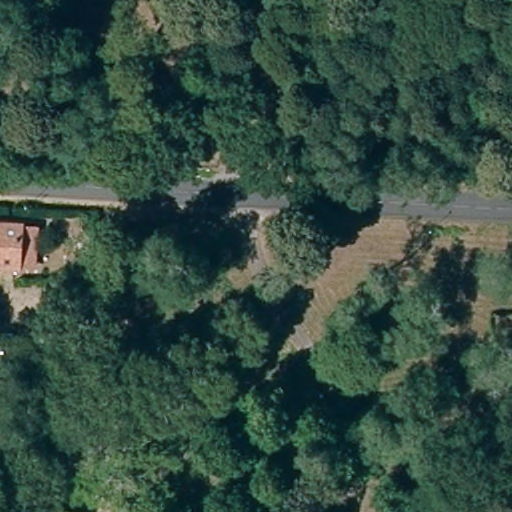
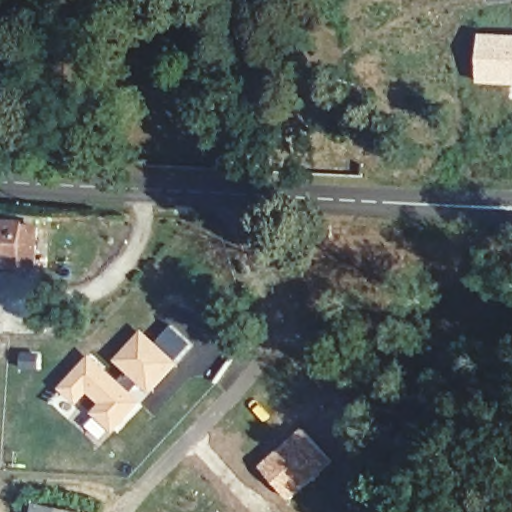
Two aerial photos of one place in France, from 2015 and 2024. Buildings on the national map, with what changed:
unchanged [(12,266),(0,266),(0,228),(28,230),(27,252),(26,267),(12,266)]
new [(156,341),(170,324),(192,342),(179,362),(150,394),(113,361),(142,329),(156,341)]
new [(91,354),(142,404),(113,433),(111,432),(100,442),(87,431),(97,421),(90,413),(98,404),(89,395),(79,406),(59,387),(91,354)]
new [(302,427),(335,462),(291,502),(259,466),(302,427)]

